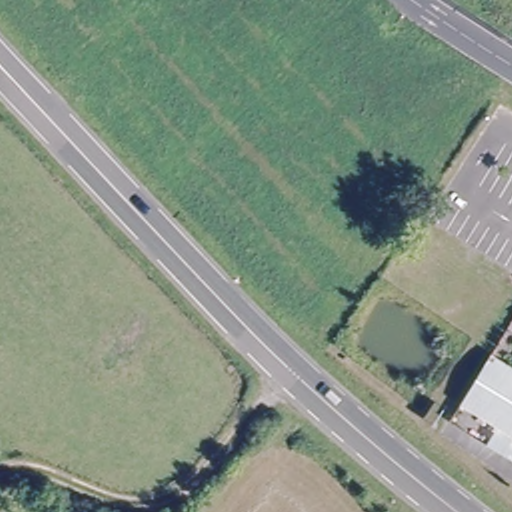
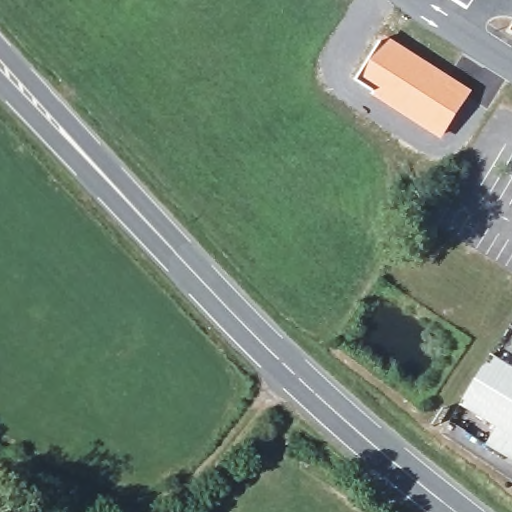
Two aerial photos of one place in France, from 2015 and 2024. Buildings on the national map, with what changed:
new [(388,36),(473,90),(442,139),(373,96),(378,88),(361,77),(388,36)]
unchanged [(499,429),(460,405),(491,353),(512,366),(512,460),(488,447),(499,429)]

